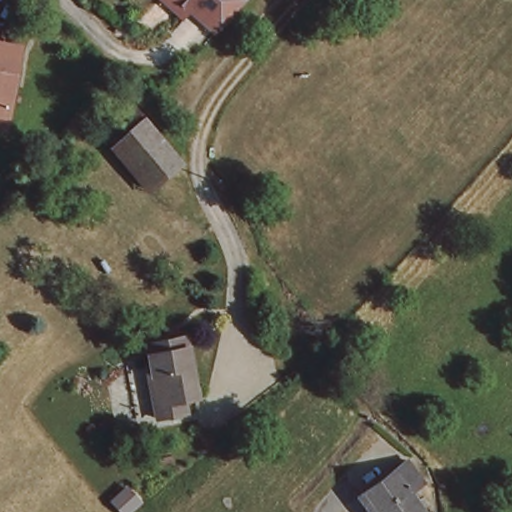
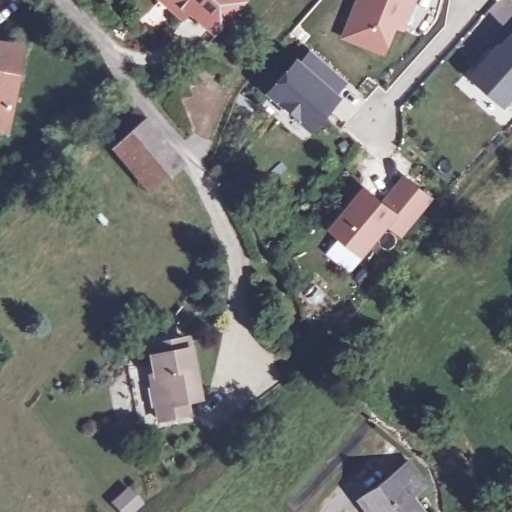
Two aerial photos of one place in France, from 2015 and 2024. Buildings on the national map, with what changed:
unchanged [(185,7),(180,13),(166,0),(235,0),(211,27),(193,10),(187,5),(185,7)]
new [(393,27),(382,54),(343,39),(359,0),(412,0),(408,11),(400,30),(393,27)]
new [(512,31),(512,91),(502,102),(472,74),(510,30),(512,31)]
unchanged [(12,41),(4,117),(0,116),(0,40),(12,41)]
new [(270,95),(297,66),(309,52),(347,85),(334,99),(307,129),(295,117),(284,107),(270,95)]
unchanged [(152,195),(114,154),(103,142),(133,117),(145,129),(182,170),(152,195)]
new [(362,191),(381,207),(405,181),(428,202),(398,236),(385,224),(359,255),(330,230),(362,191)]
unchanged [(140,375),(137,354),(176,346),(187,406),(174,408),(177,422),(147,427),(145,414),(137,375),(140,375)]
unchanged [(407,496),(418,512),(368,512),(357,497),(403,462),(420,486),(407,496)]

